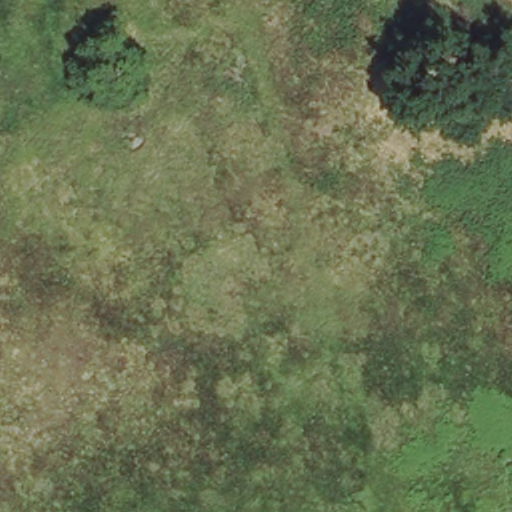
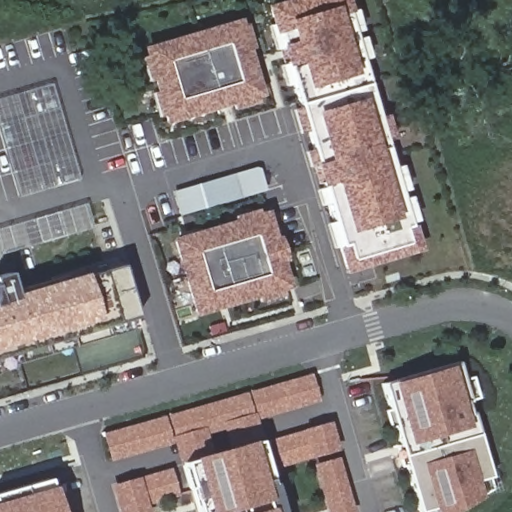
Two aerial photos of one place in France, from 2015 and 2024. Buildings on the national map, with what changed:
new [(337,0),(412,245),(342,266),(263,8),(289,0),(337,0)]
new [(228,25),(249,95),(159,121),(139,51),(228,25)]
new [(254,166),(261,191),(177,215),(170,190),(254,166)]
new [(258,215),(277,285),(189,310),(169,240),(258,215)]
new [(12,290),(53,277),(104,263),(105,268),(121,264),(140,328),(73,346),(70,338),(0,358),(0,274),(7,271),(12,290)]
new [(73,346),(0,368),(0,358),(70,338),(73,346)]
new [(390,382),(450,365),(457,362),(461,378),(470,376),(476,398),(468,401),(465,402),(470,414),(471,413),(490,477),(492,476),(496,491),(481,497),(456,512),(415,512),(381,384),(390,382)]
new [(309,373),(317,402),(255,420),(258,435),(249,437),(174,458),(169,445),(108,461),(100,433),(309,373)]
new [(278,469),(270,438),(330,422),(338,451),(333,452),(336,454),(352,512),(325,512),(310,458),(278,469)]
new [(249,437),(270,512),(189,512),(174,458),(249,437)]
new [(166,468),(174,495),(144,506),(145,512),(111,512),(104,483),(166,468)]
new [(52,512),(0,512),(0,490),(41,477),(52,512)]

